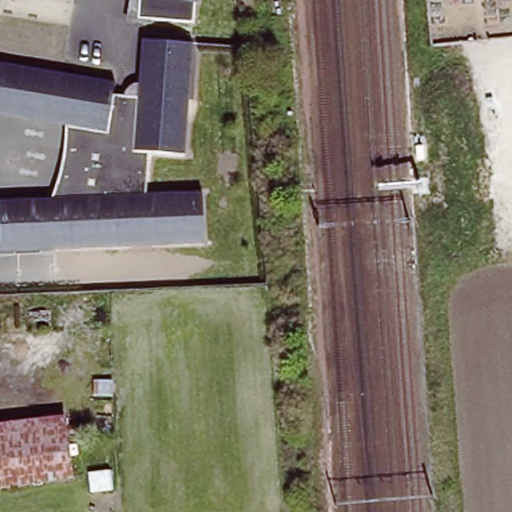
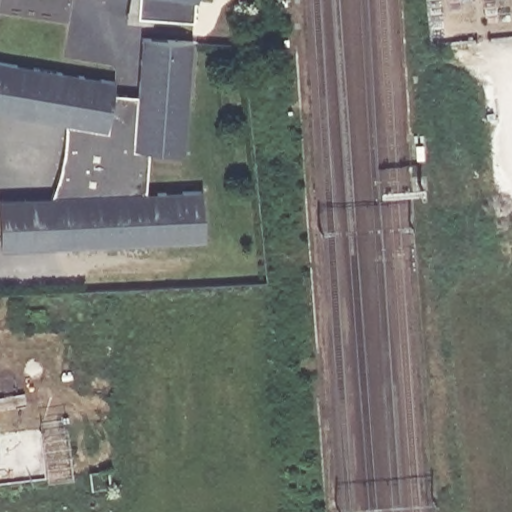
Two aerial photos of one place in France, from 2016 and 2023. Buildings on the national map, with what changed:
unchanged [(198,3),(196,2),(194,22),(155,18),(154,23),(125,21),(127,0),(198,0),(198,3)]
unchanged [(113,84),(110,96),(136,98),(138,40),(189,43),(181,157),(144,155),(141,197),(198,195),(200,245),(48,252),(45,226),(46,202),(54,178),(63,140),(63,126),(0,117),(0,65),(113,84)]
unchanged [(0,254),(0,203),(46,202),(45,226),(48,252),(0,254)]
unchanged [(0,487),(0,426),(65,420),(72,480),(0,487)]

